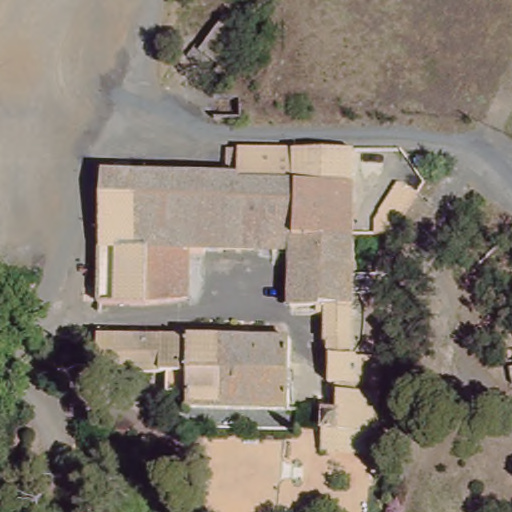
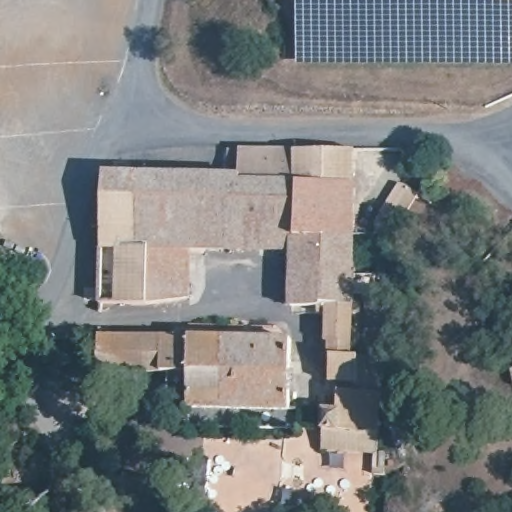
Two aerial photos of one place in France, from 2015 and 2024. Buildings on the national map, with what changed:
new [(297,2),(512,3),(512,66),(298,66),(297,2)]
demolished [(258,30),(235,64),(207,45),(232,11),(258,30)]
unchanged [(244,141),(363,141),(360,231),(291,229),(288,247),(194,246),(151,245),(148,300),(101,298),(108,166),(244,169),(244,141)]
unchanged [(360,339),(388,341),(385,425),(330,422),(330,412),(339,410),(342,376),(332,370),(334,339),(329,340),(327,310),(289,307),(288,247),(291,229),(360,231),(360,278),(360,339)]
unchanged [(194,246),(191,299),(148,300),(151,245),(194,246)]
unchanged [(187,371),(97,368),(99,328),(296,334),(296,411),(185,410),(187,371)]
new [(377,454),(322,451),(324,429),(321,429),(323,407),(339,408),(339,410),(330,412),(330,422),(380,425),(377,454)]

